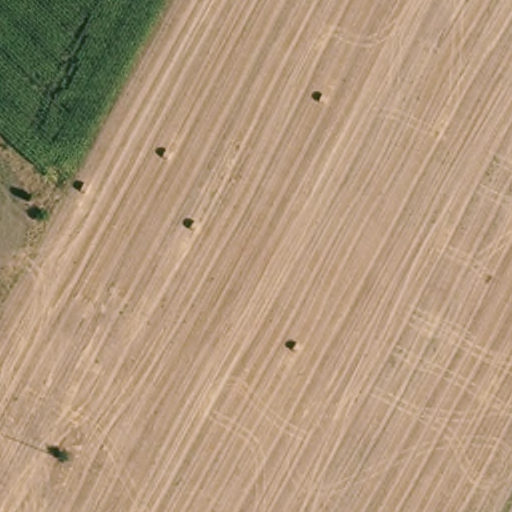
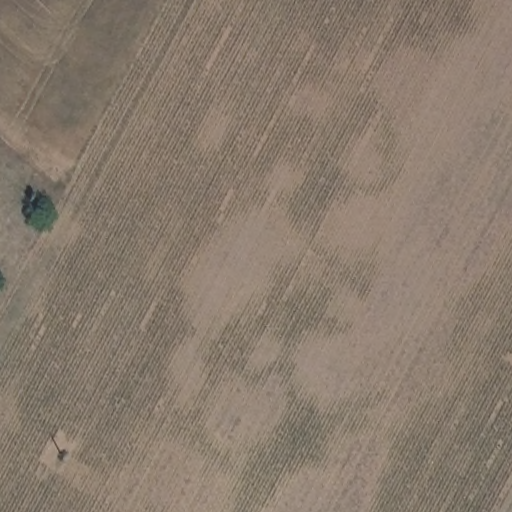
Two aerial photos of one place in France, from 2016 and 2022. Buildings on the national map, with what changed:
[]

